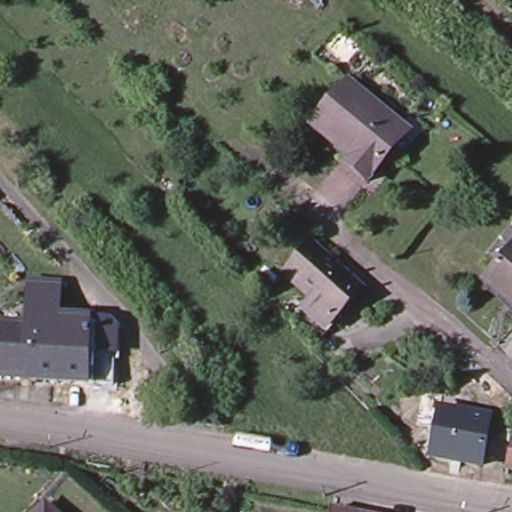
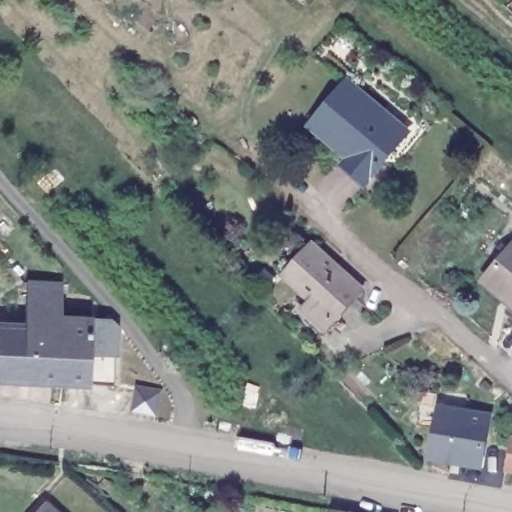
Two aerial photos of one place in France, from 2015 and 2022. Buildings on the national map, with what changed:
unchanged [(394,165),(379,164),(377,166),(317,117),(344,86),(360,99),(364,95),(385,112),(382,116),(381,117),(396,130),(402,135),(412,144),(394,165)]
unchanged [(350,159),(327,140),(325,142),(308,128),(317,117),(377,166),(361,185),(342,169),(350,159)]
unchanged [(397,129),(406,119),(422,132),(413,142),(397,129)]
unchanged [(311,297),(285,272),(294,263),(313,242),(359,285),(340,307),(335,311),(328,320),(319,330),(306,318),(303,321),(295,313),(308,300),(311,297)]
unchanged [(512,243),(512,303),(483,277),(512,243)]
unchanged [(25,328),(25,306),(27,306),(30,285),(62,288),(59,319),(110,322),(115,323),(114,327),(110,387),(57,383),(32,382),(0,381),(0,326),(25,328)]
unchanged [(486,415),(482,445),(479,462),(429,454),(437,406),(442,407),(486,415)]
unchanged [(512,434),(512,470),(505,468),(504,467),(509,433),(512,434)]
unchanged [(47,506),(53,512),(41,512),(47,506)]

